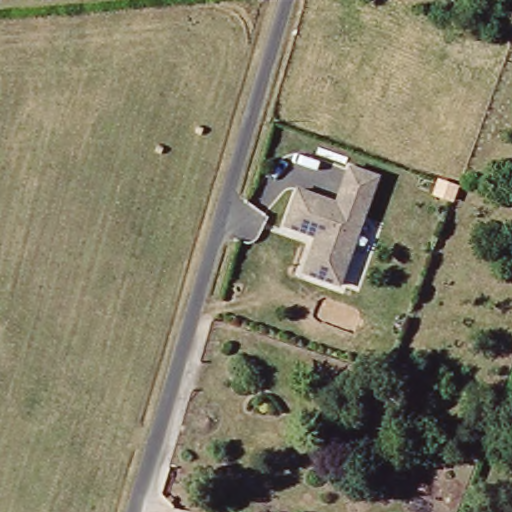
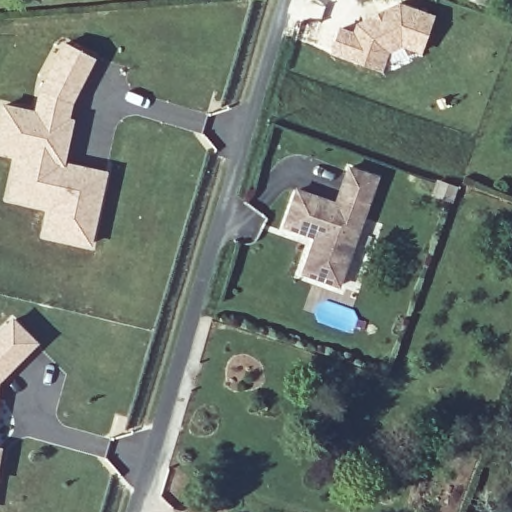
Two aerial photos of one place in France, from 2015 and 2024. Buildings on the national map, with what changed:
new [(338,25),(349,27),(350,26),(361,17),(398,1),(435,15),(421,55),(402,49),(390,52),(382,72),(328,54),(338,25)]
new [(69,117),(76,120),(66,162),(109,171),(92,246),(44,237),(49,210),(6,199),(17,157),(0,153),(0,109),(2,102),(34,110),(38,90),(62,41),(96,58),(72,104),(69,117)]
unchanged [(297,192),(336,206),(348,170),(377,179),(341,287),(305,276),(316,240),(285,230),(297,192)]

